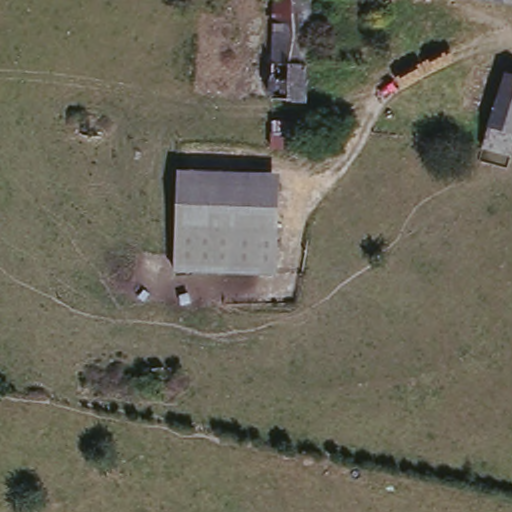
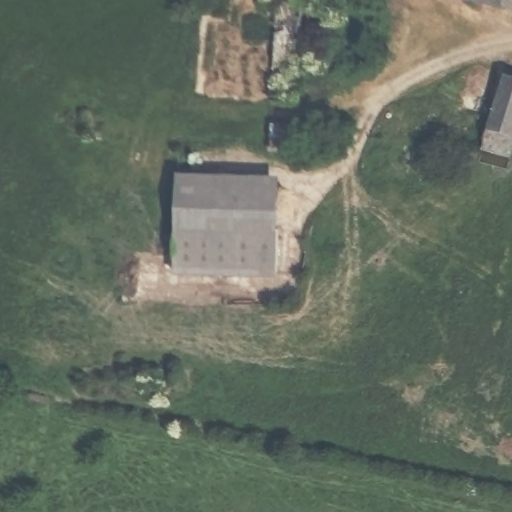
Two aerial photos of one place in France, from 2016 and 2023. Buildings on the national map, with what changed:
unchanged [(273,102),(276,0),(257,0),(258,0),(309,0),(307,102),(273,102)]
unchanged [(503,8),(473,0),(512,0),(512,10),(503,8)]
unchanged [(512,75),(512,153),(510,157),(483,149),(507,74),(512,75)]
unchanged [(103,128),(101,143),(78,141),(78,125),(103,128)]
unchanged [(174,273),(178,172),(282,176),(277,277),(174,273)]

